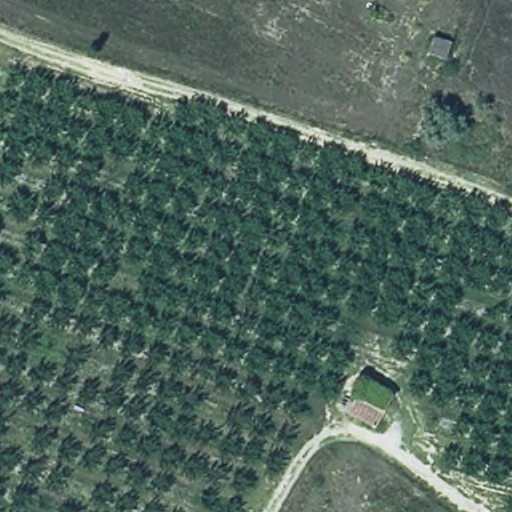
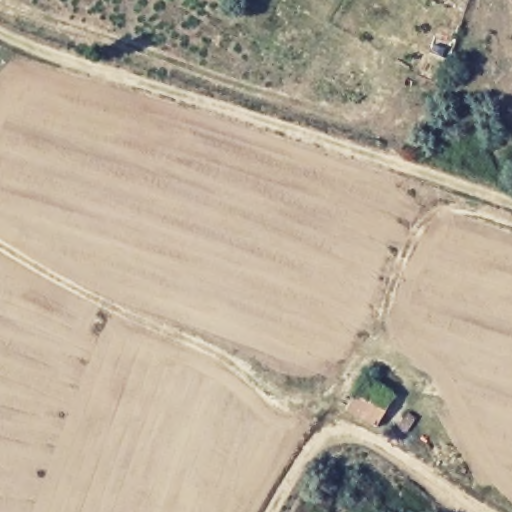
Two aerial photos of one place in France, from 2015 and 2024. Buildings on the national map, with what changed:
unchanged [(397,390),(382,422),(342,406),(362,372),(397,390)]

